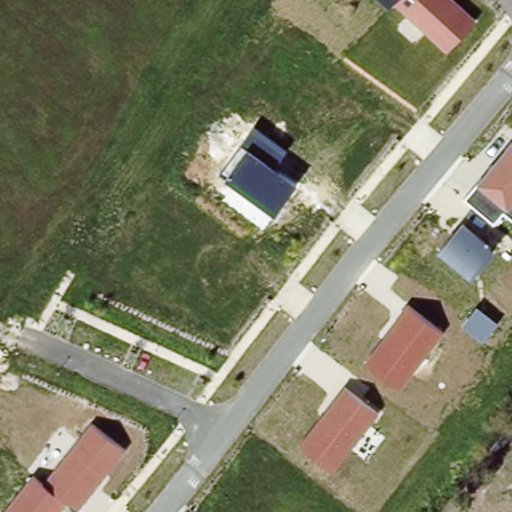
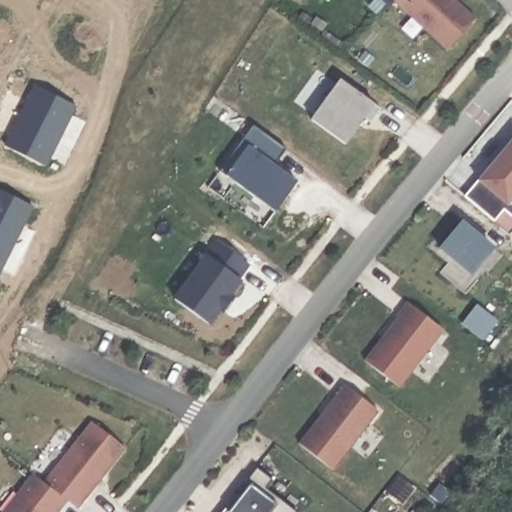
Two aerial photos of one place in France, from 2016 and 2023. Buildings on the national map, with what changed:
unchanged [(390,5),(385,0),(457,0),(477,18),(445,50),(393,2),(390,5)]
new [(340,78),(375,104),(378,107),(368,120),(365,117),(346,145),(311,117),(340,78)]
new [(36,86),(76,106),(46,166),(6,146),(36,86)]
unchanged [(219,170),(252,125),(286,149),(275,165),(298,182),(276,211),(219,170)]
unchanged [(504,209),(494,221),(463,195),(512,133),(512,215),(504,209)]
new [(24,225),(21,224),(0,266),(0,190),(33,206),(24,225)]
unchanged [(439,250),(463,221),(496,250),(473,277),(439,250)]
new [(207,254),(241,280),(231,294),(235,296),(222,313),(220,310),(210,325),(174,297),(207,254)]
new [(0,273),(0,268),(2,269),(0,273)]
unchanged [(365,358),(407,302),(442,330),(400,386),(365,358)]
new [(479,306),(500,322),(486,340),(465,323),(479,306)]
unchanged [(300,442),(342,385),(378,412),(333,468),(300,442)]
unchanged [(68,500),(59,512),(2,512),(32,472),(45,481),(90,422),(125,447),(79,508),(68,500)]
new [(227,505),(231,510),(251,485),(246,480),(257,467),(273,480),(264,495),(276,503),(279,498),(298,512),(222,512),(227,505)]

